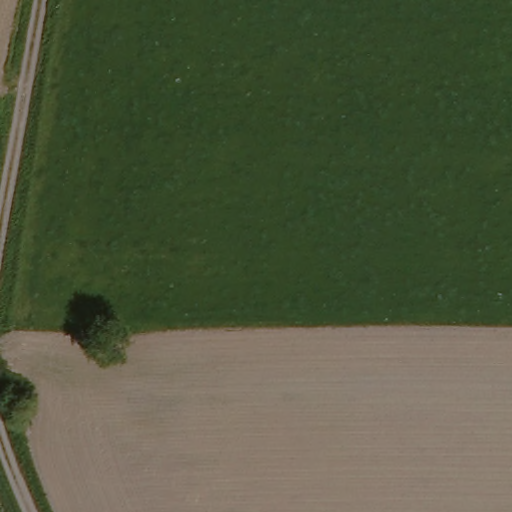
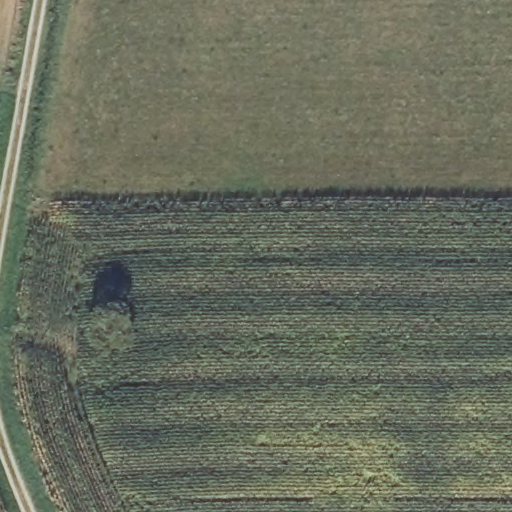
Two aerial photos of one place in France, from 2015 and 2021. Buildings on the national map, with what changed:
[]

